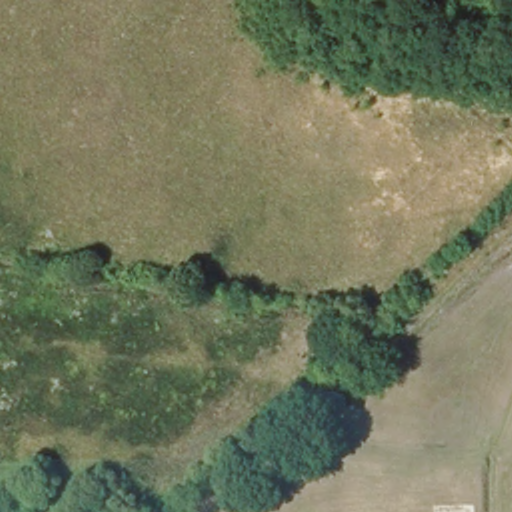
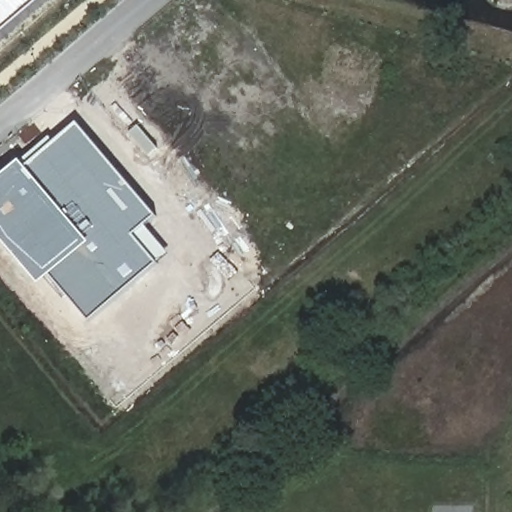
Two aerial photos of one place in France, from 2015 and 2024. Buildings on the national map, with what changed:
new [(0,41),(0,0),(49,0),(0,41)]
new [(135,235),(159,263),(90,321),(51,277),(40,286),(0,238),(0,179),(21,161),(26,166),(78,123),(157,217),(147,225),(135,235)]

